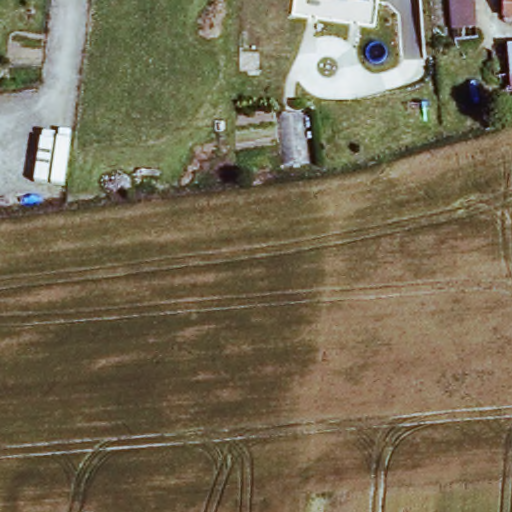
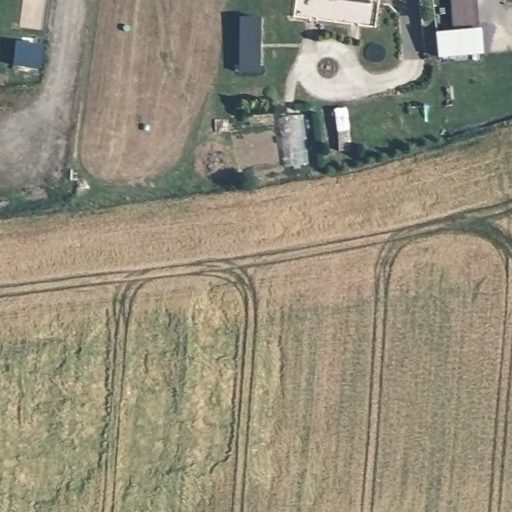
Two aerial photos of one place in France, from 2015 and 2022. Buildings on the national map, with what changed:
unchanged [(365,6),(327,0),(365,0),(365,6)]
unchanged [(476,31),(453,32),(451,0),(474,0),(476,31)]
unchanged [(501,17),(502,0),(512,0),(512,18),(501,17)]
new [(261,19),(260,72),(240,74),(240,20),(261,19)]
unchanged [(512,51),(512,89),(508,51),(512,51)]

